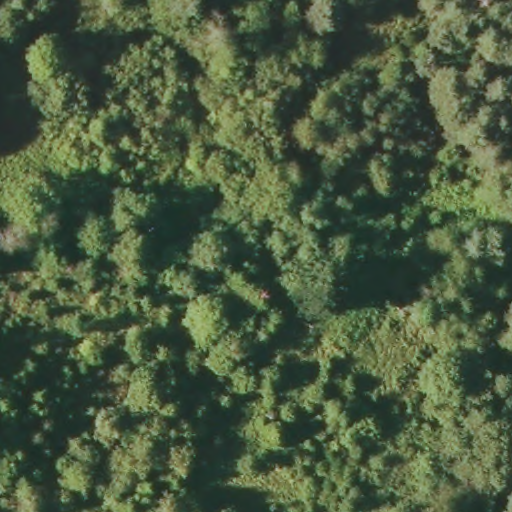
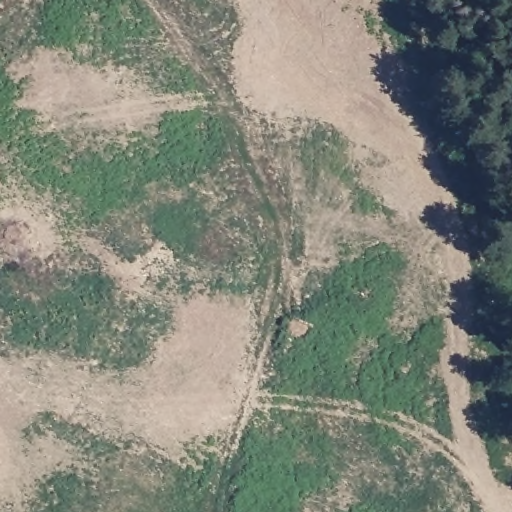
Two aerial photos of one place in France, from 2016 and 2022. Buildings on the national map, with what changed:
[]

